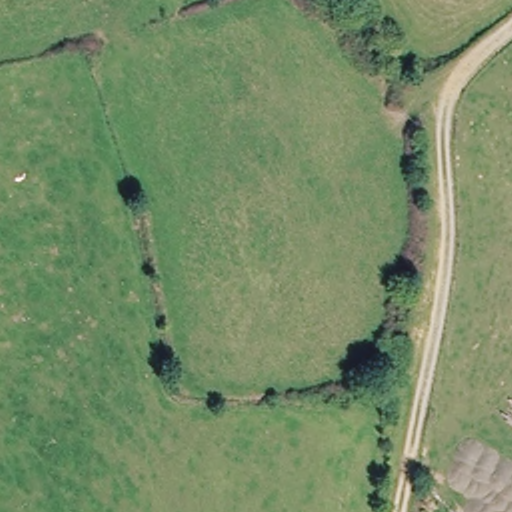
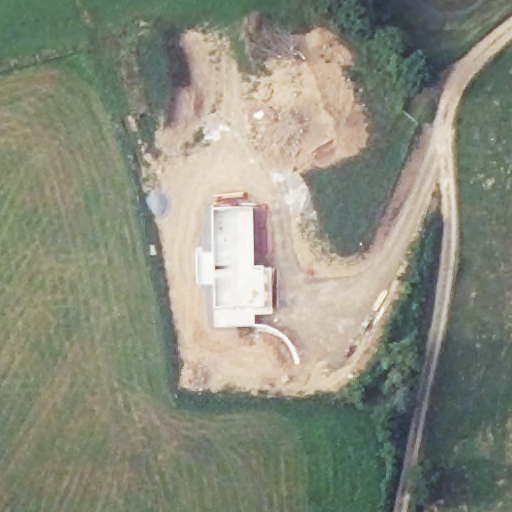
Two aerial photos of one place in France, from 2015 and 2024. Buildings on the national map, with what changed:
new [(212,212),(253,212),(252,270),(262,270),(263,311),(214,311),(212,212)]

